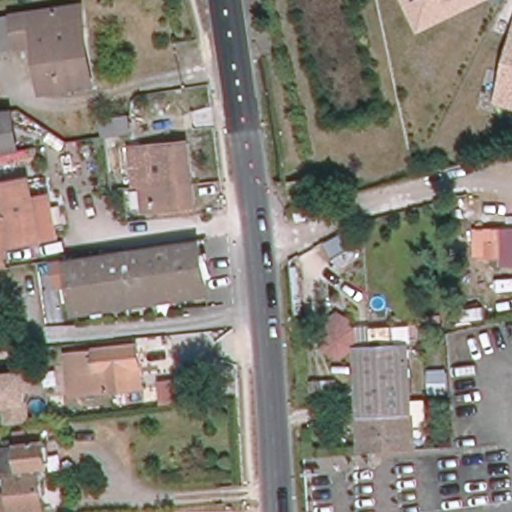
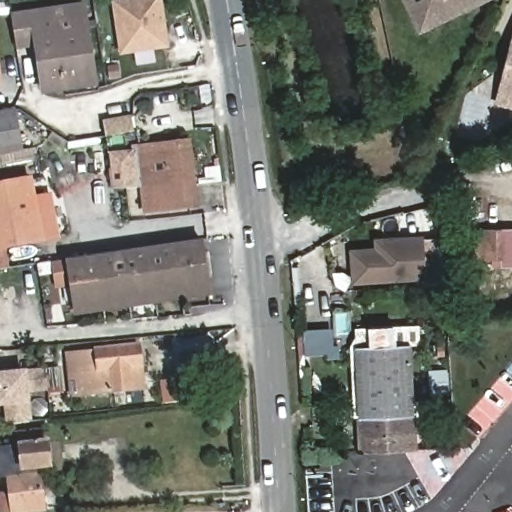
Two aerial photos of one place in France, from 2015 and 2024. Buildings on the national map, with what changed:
new [(142,0),(166,0),(172,46),(124,54),(117,4),(142,0)]
unchanged [(420,34),(403,0),(487,0),(420,34)]
unchanged [(37,46),(0,51),(0,20),(13,18),(12,15),(85,5),(97,85),(44,94),(37,46)]
unchanged [(494,104),(512,35),(512,108),(494,104)]
new [(0,64),(4,86),(0,87),(0,64)]
unchanged [(0,155),(0,113),(16,110),(23,151),(5,155),(0,155)]
unchanged [(106,137),(104,121),(131,117),(134,134),(106,137)]
unchanged [(192,185),(154,188),(142,189),(140,172),(133,172),(131,148),(192,142),(196,185),(192,185)]
unchanged [(307,195),(292,199),(288,182),(304,178),(307,195)]
unchanged [(198,209),(145,214),(142,189),(154,188),(192,185),(196,185),(198,209)]
unchanged [(35,214),(54,210),(60,239),(41,242),(2,250),(6,267),(0,268),(0,191),(30,186),(35,214)]
unchanged [(500,266),(501,260),(474,258),(473,229),(512,227),(512,266),(500,266)]
new [(444,283),(424,283),(425,280),(352,282),(351,249),(375,247),(375,238),(423,236),(424,239),(442,237),(444,283)]
unchanged [(68,259),(202,241),(209,293),(75,312),(71,282),(57,285),(54,261),(68,259)]
unchanged [(326,335),(332,331),(329,326),(340,318),(352,324),(349,330),(356,332),(357,351),(342,361),(327,352),(326,335)]
unchanged [(68,355),(96,352),(96,348),(139,345),(143,388),(72,396),(68,355)]
unchanged [(363,457),(357,351),(409,348),(416,453),(378,456),(363,457)]
unchanged [(32,391),(36,422),(15,425),(12,405),(0,406),(0,377),(50,371),(52,388),(32,391)]
unchanged [(208,378),(210,397),(165,403),(164,382),(208,378)]
unchanged [(51,466),(40,467),(45,510),(25,512),(10,512),(7,477),(0,477),(0,447),(48,442),(51,466)]

